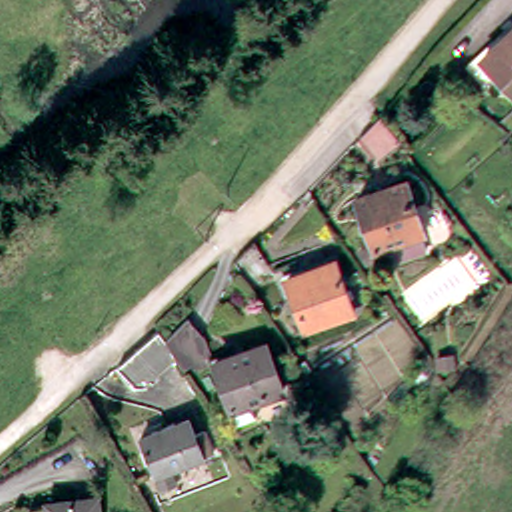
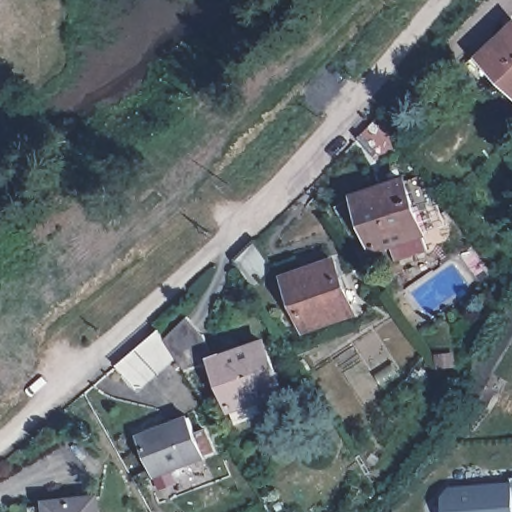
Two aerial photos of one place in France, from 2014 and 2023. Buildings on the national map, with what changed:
unchanged [(512,88),(482,57),(512,29),(512,88)]
unchanged [(380,167),(357,137),(378,113),(405,148),(380,167)]
unchanged [(401,180),(418,233),(370,248),(353,195),(401,180)]
unchanged [(270,268),(248,283),(237,264),(256,246),(270,268)]
unchanged [(335,264),(354,318),(304,335),(286,280),(335,264)]
unchanged [(167,335),(189,313),(210,332),(216,356),(185,366),(177,352),(167,335)]
unchanged [(140,384),(118,361),(160,325),(167,335),(177,352),(140,384)]
unchanged [(235,420),(230,403),(216,356),(267,339),(282,386),(250,397),(255,414),(235,420)]
unchanged [(162,485),(155,470),(141,432),(152,427),(151,423),(175,414),(177,418),(191,413),(206,451),(172,464),(177,479),(162,485)]
new [(452,486),(512,481),(512,512),(445,512),(443,497),(452,486)]
unchanged [(90,512),(39,512),(38,503),(88,497),(90,512)]

